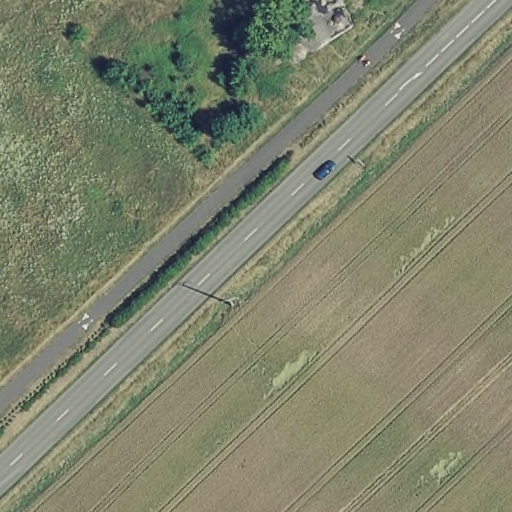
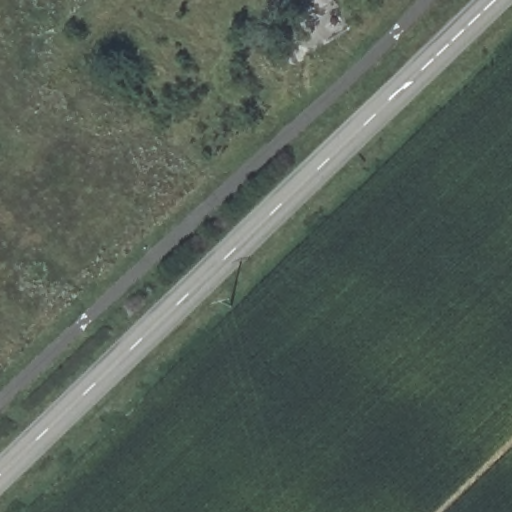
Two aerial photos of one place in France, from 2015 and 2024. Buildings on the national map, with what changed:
unchanged [(338,0),(318,18),(294,17),(289,0),(338,0)]

